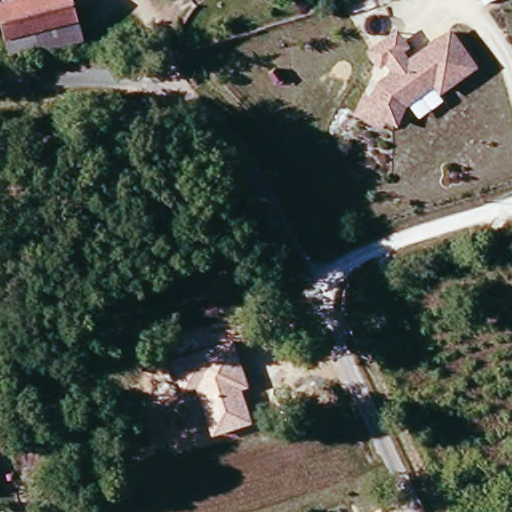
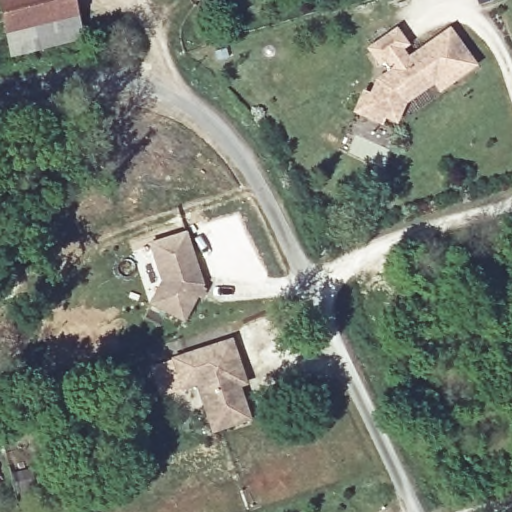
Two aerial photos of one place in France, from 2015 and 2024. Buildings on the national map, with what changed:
unchanged [(0,4),(13,0),(66,0),(71,14),(4,38),(0,27),(0,4)]
unchanged [(4,38),(71,14),(78,33),(11,56),(4,38)]
unchanged [(407,49),(402,52),(406,59),(450,31),(476,69),(437,92),(432,87),(402,105),(399,125),(377,128),(351,115),(361,95),(367,95),(371,85),(391,72),(386,64),(376,69),(365,50),(395,30),(407,49)]
new [(205,286),(184,325),(150,305),(161,281),(149,244),(186,231),(205,286)]
unchanged [(248,386),(241,388),(252,421),(211,435),(196,389),(182,393),(172,360),(232,338),(248,386)]

